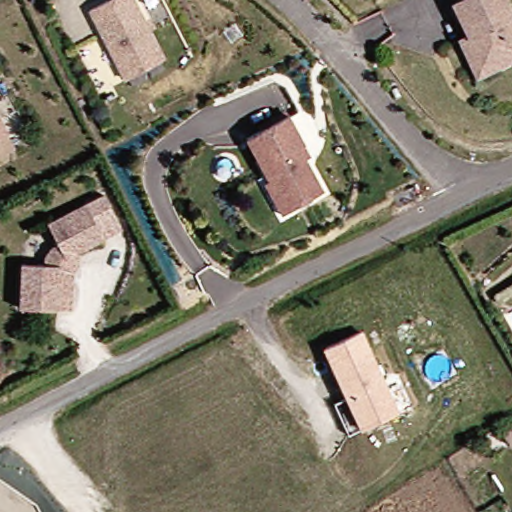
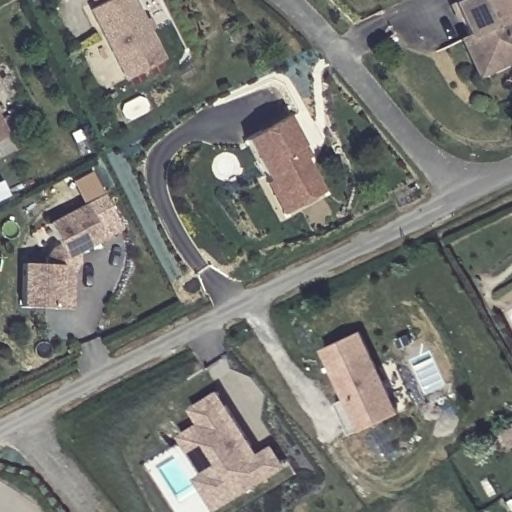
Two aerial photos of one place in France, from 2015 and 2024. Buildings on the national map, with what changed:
new [(90,2),(89,0),(94,0),(90,2)]
unchanged [(163,65),(125,84),(90,14),(118,0),(131,0),(163,65)]
unchanged [(473,38),(457,6),(470,0),(509,0),(512,6),(512,64),(493,73),(482,78),(464,42),(473,38)]
unchanged [(261,184),(266,182),(244,138),(289,117),(304,147),(303,147),(308,158),(303,161),(322,195),(295,209),(279,218),(261,184)]
unchanged [(6,136),(0,140),(0,124),(6,136)]
unchanged [(70,291),(70,311),(57,310),(18,308),(21,263),(43,265),(45,257),(48,249),(49,247),(57,242),(46,222),(103,194),(118,223),(121,229),(103,238),(77,250),(73,271),(70,291)]
unchanged [(361,327),(401,412),(364,430),(322,346),(361,327)]
new [(259,454),(271,447),(285,470),(216,512),(195,478),(203,473),(181,434),(199,423),(191,409),(219,391),(259,454)]
unchanged [(512,448),(511,448),(500,426),(512,420),(512,448)]

